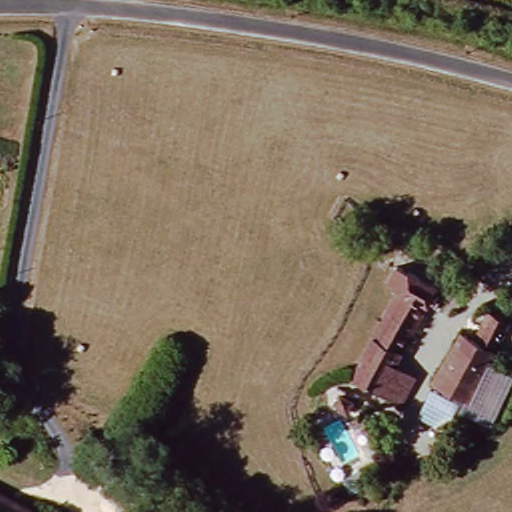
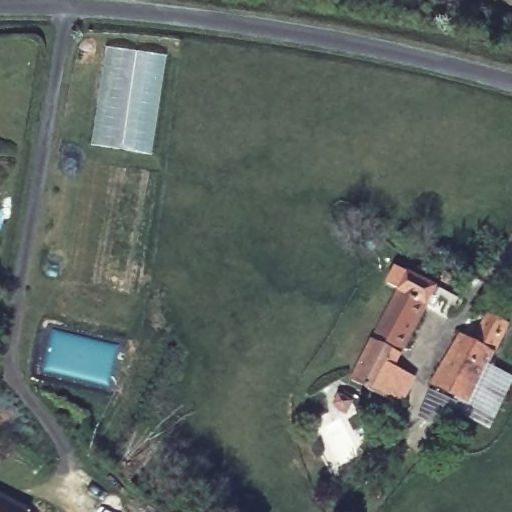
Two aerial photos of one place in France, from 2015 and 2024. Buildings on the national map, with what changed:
new [(106,45),(167,54),(151,152),(92,142),(106,45)]
unchanged [(396,288),(383,282),(390,266),(433,286),(393,368),(412,377),(398,406),(349,381),(396,288)]
unchanged [(413,408),(437,359),(449,365),(464,334),(491,347),(452,427),(413,408)]
unchanged [(25,512),(0,512),(0,494),(27,507),(25,512)]

